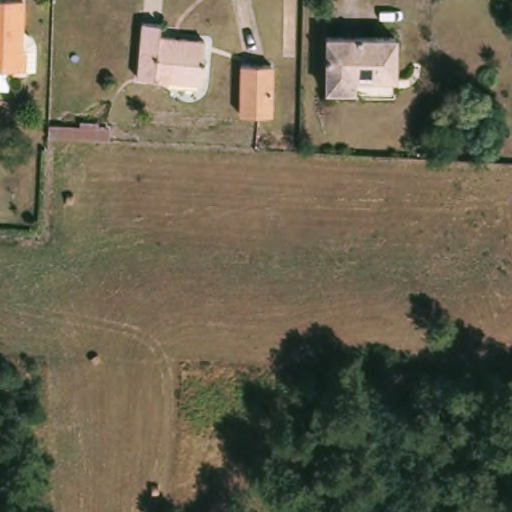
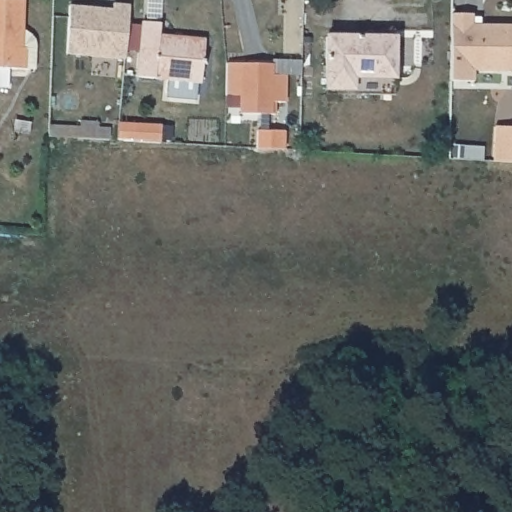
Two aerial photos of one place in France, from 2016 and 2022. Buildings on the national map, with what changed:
unchanged [(29,38),(31,43),(30,70),(20,70),(16,70),(0,69),(0,0),(17,0),(17,30),(22,32),(26,35),(29,38)]
new [(70,6),(112,10),(113,5),(130,6),(125,60),(67,54),(70,6)]
new [(472,14),(473,25),(512,26),(512,71),(473,71),(474,81),(451,80),(452,14),(472,14)]
unchanged [(139,74),(144,19),(162,21),(160,33),(206,37),(202,80),(139,74)]
unchanged [(321,90),(322,37),(391,38),(390,79),(349,78),(348,90),(321,90)]
unchanged [(236,115),(237,65),(267,65),(266,115),(236,115)]
unchanged [(49,123),(82,125),(83,120),(99,121),(99,126),(110,126),(110,138),(50,135),(49,123)]

